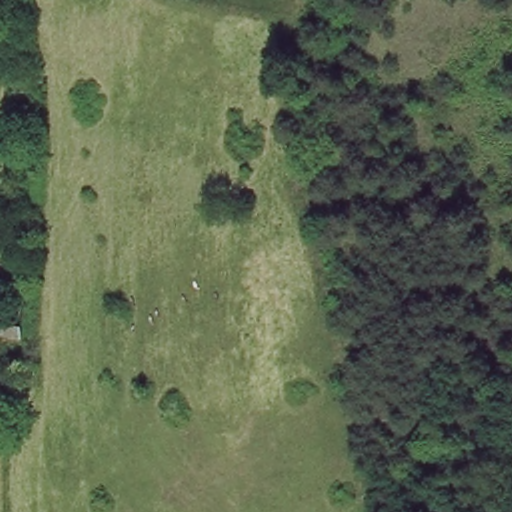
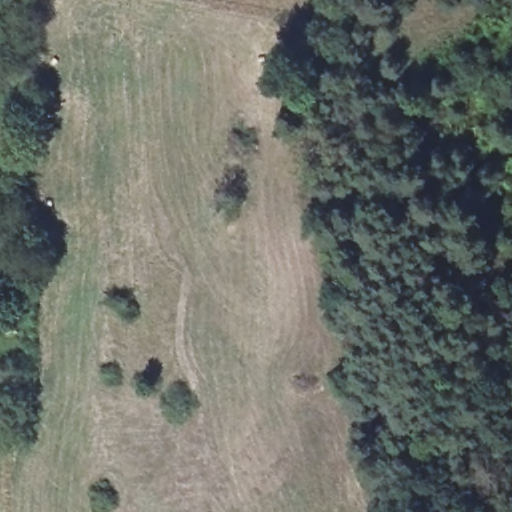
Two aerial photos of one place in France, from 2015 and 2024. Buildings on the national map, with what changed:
unchanged [(20,309),(19,335),(0,335),(0,309),(20,309)]

